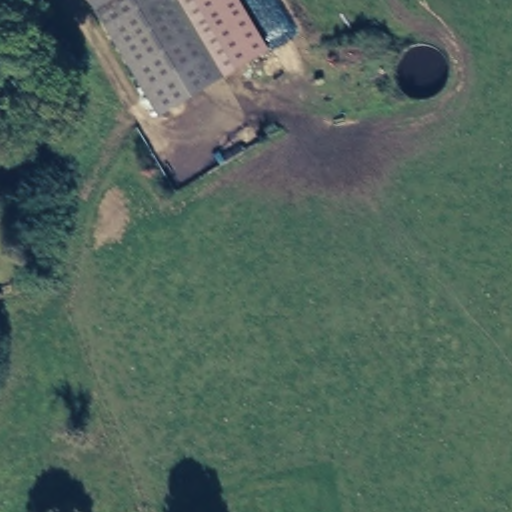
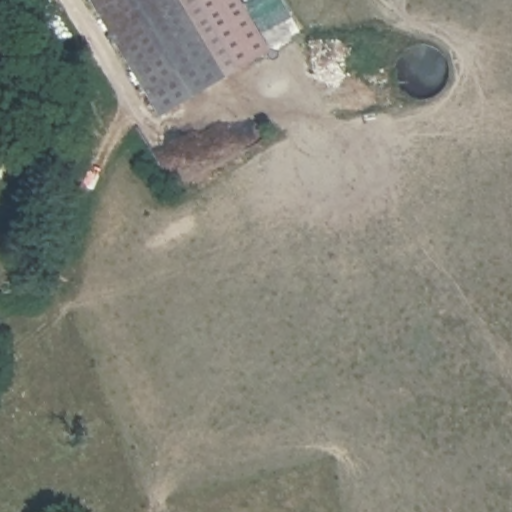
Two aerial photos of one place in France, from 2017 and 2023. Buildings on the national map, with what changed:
unchanged [(160,117),(93,0),(233,0),(265,54),(160,117)]

